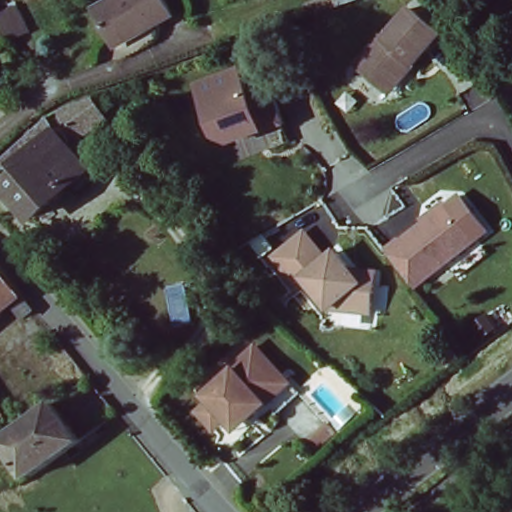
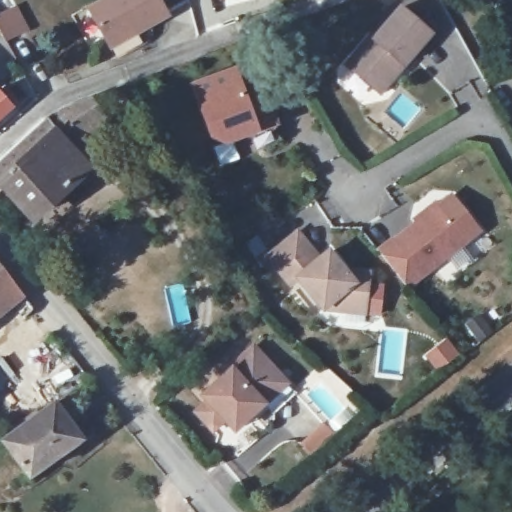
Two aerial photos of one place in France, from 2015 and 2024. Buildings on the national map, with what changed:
unchanged [(138,33),(113,46),(95,13),(119,0),(162,0),(173,20),(141,38),(138,33)]
unchanged [(29,32),(8,42),(0,27),(0,13),(16,6),(29,32)]
unchanged [(376,89),(347,64),(371,36),(374,38),(401,7),(431,32),(403,64),(380,92),(376,89)]
unchanged [(240,84),(248,107),(267,100),(281,138),(231,156),(217,150),(198,100),(240,84)]
new [(15,108),(0,120),(0,91),(15,108)]
unchanged [(71,118),(69,120),(58,105),(60,104),(90,93),(102,111),(78,128),(71,118)]
unchanged [(44,114),(46,113),(91,173),(75,190),(69,183),(36,213),(2,176),(0,178),(0,155),(44,114)]
unchanged [(417,282),(388,245),(400,234),(402,236),(427,217),(424,213),(445,197),(448,200),(475,236),(417,282)]
unchanged [(367,284),(364,312),(323,308),(299,277),(291,283),(268,256),(298,232),(320,259),(329,251),(344,270),(368,272),(367,284)]
unchanged [(16,289),(29,306),(29,307),(20,315),(8,300),(0,306),(0,269),(16,289)]
unchanged [(193,413),(213,396),(208,390),(236,364),(235,362),(258,341),(284,369),(261,390),(264,393),(235,420),(229,414),(210,432),(193,413)]
unchanged [(301,388),(278,409),(269,398),(240,425),(235,420),(264,393),(261,390),(284,369),(301,388)]
unchanged [(18,472),(23,469),(3,441),(55,403),(82,440),(30,478),(24,480),(18,472)]
unchanged [(1,411),(0,412),(0,411),(1,411)]

